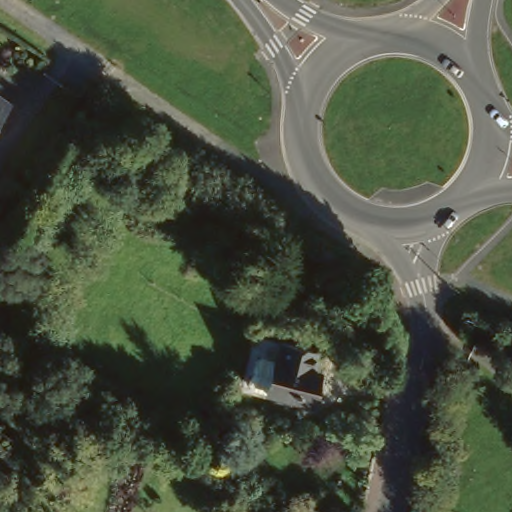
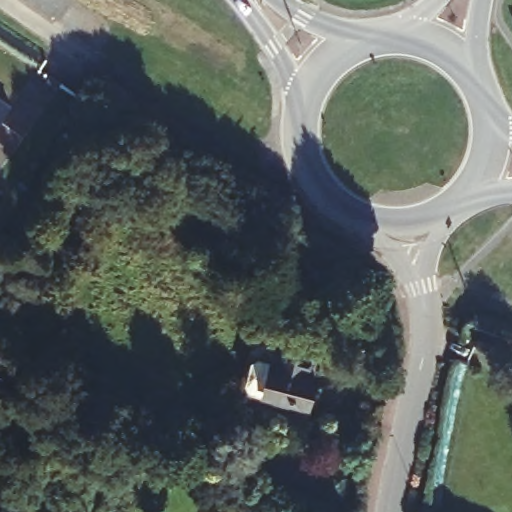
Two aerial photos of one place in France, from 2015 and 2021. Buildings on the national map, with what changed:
unchanged [(8,101),(0,111),(0,96),(8,101)]
unchanged [(327,352),(309,396),(272,384),(258,380),(255,374),(262,354),(269,351),(282,355),(288,339),(327,352)]

